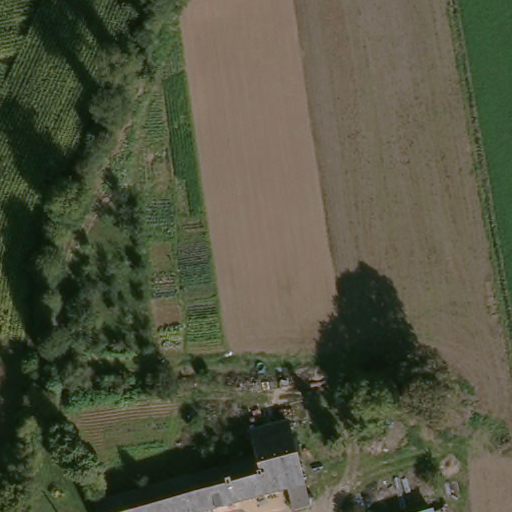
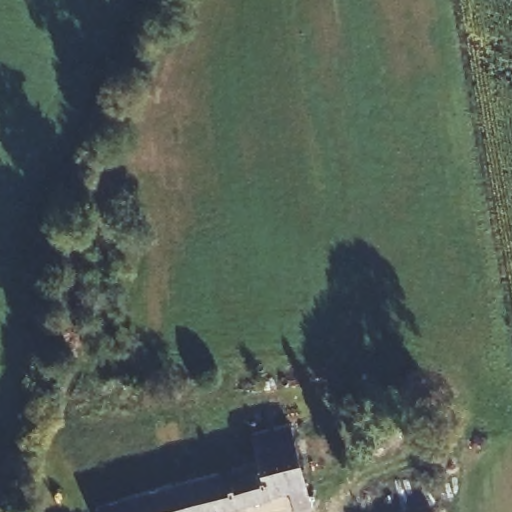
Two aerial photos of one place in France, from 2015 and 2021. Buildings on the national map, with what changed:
unchanged [(291,510),(286,491),(211,512),(96,512),(94,504),(258,455),(252,431),(289,420),(293,433),(304,478),(311,506),(291,510)]
unchanged [(320,425),(331,471),(304,478),(293,433),(320,425)]

